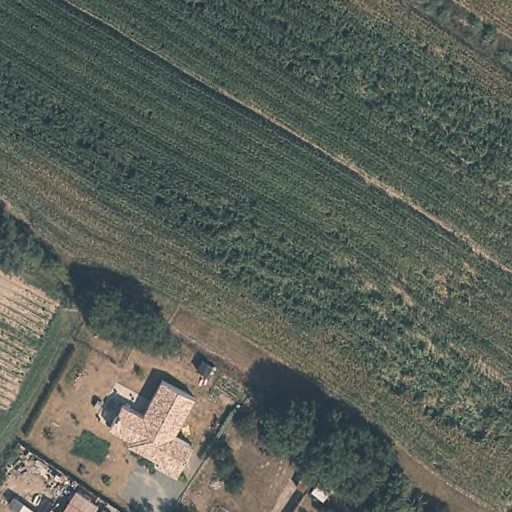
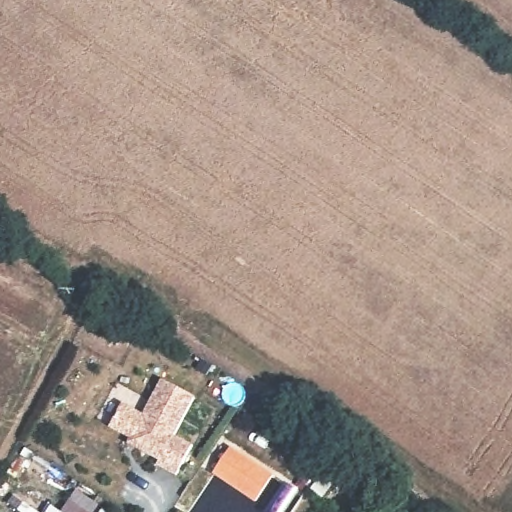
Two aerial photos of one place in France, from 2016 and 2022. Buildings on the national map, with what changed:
unchanged [(197,397),(177,437),(195,446),(178,477),(156,466),(159,460),(126,444),(129,438),(109,428),(122,403),(143,414),(161,380),(197,397)]
new [(233,447),(274,475),(256,502),(214,474),(233,447)]

